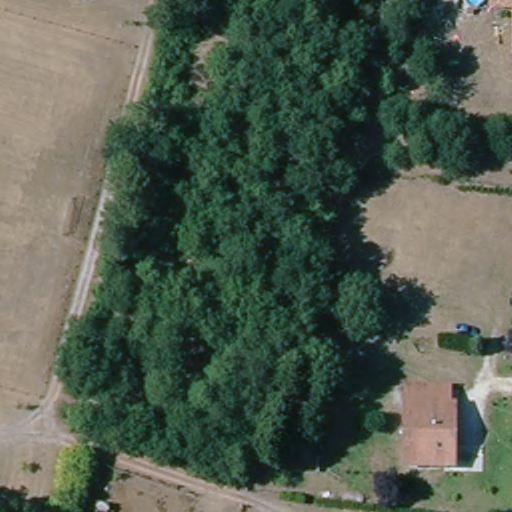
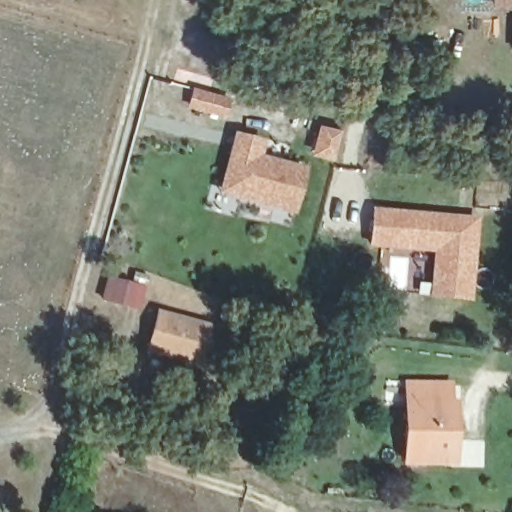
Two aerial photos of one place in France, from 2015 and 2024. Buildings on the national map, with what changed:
unchanged [(497,0),(512,0),(512,6),(497,6),(497,0)]
new [(197,93),(231,102),(226,117),(192,108),(197,93)]
new [(319,126),(338,132),(331,157),(313,153),(319,126)]
new [(237,137),(263,145),(259,158),(303,170),(292,210),(241,196),(223,192),(233,153),(237,137)]
new [(371,206),(480,216),(473,303),(417,296),(418,281),(428,282),(431,254),(367,249),(371,206)]
new [(106,282),(130,289),(124,308),(101,301),(106,282)]
new [(213,323),(203,367),(145,353),(156,310),(213,323)]
unchanged [(409,460),(402,384),(446,380),(447,395),(456,395),(460,433),(461,456),(409,460)]

